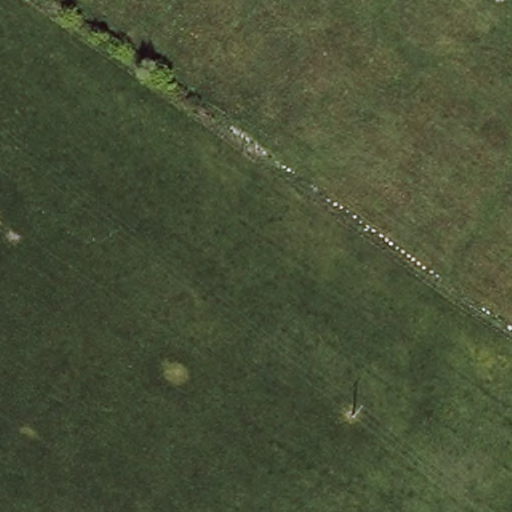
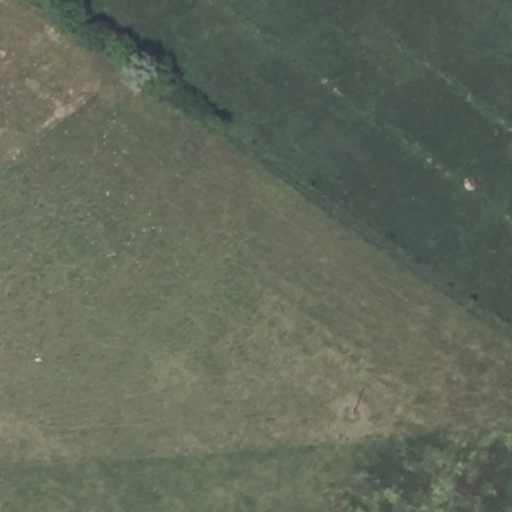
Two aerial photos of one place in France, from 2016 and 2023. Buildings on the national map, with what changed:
[]

